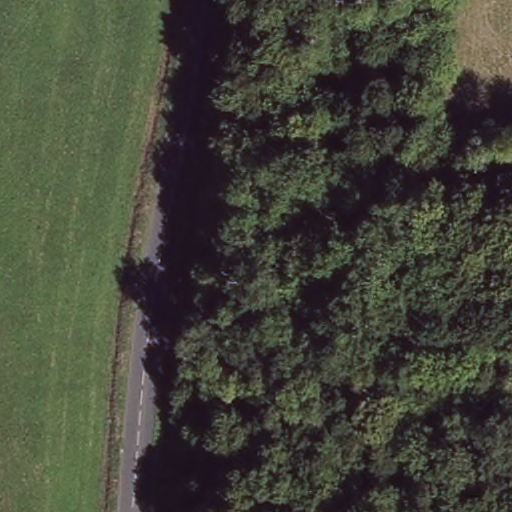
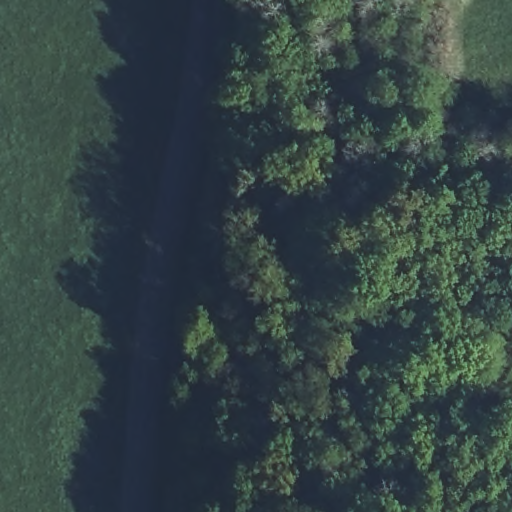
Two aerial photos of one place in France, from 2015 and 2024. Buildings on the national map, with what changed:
unchanged [(220,445),(216,484),(198,483),(202,443),(220,445)]

